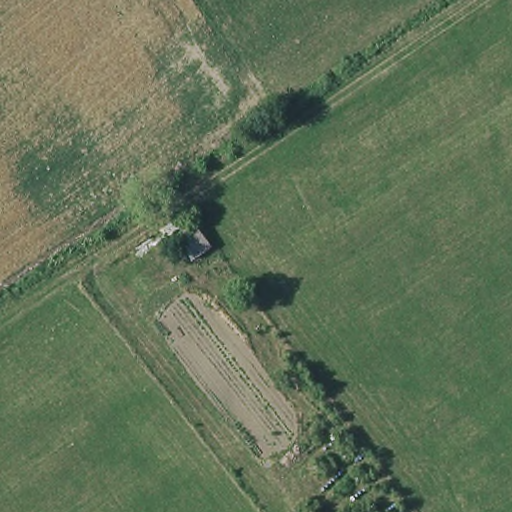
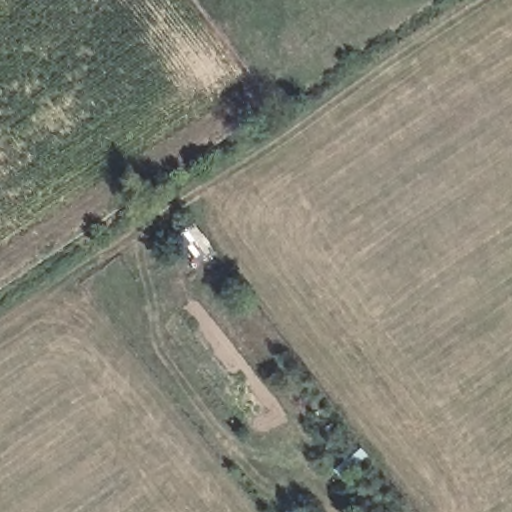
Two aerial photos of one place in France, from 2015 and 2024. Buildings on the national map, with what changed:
unchanged [(176,239),(199,225),(216,248),(193,264),(176,239)]

